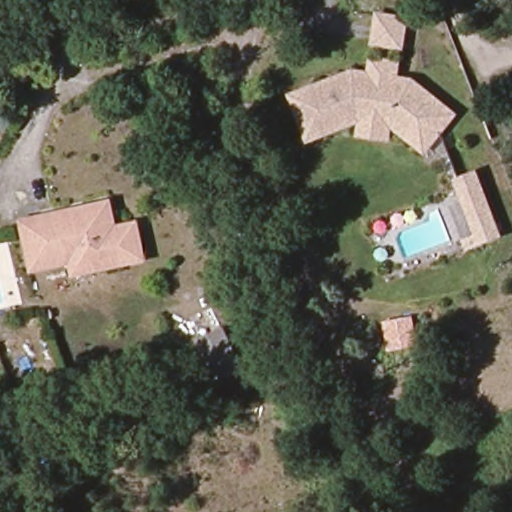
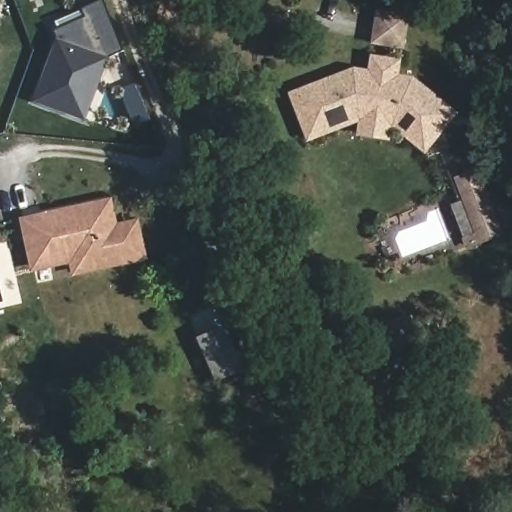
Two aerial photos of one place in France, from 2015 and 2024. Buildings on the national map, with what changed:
new [(61,44),(56,33),(87,19),(84,10),(106,0),(127,53),(108,61),(86,119),(40,102),(61,44)]
unchanged [(373,12),(407,16),(402,50),(368,45),(373,12)]
unchanged [(354,138),(356,124),(305,144),(285,94),(352,68),(365,69),(367,54),(401,59),(398,75),(412,76),(457,114),(424,154),(390,129),(388,142),(354,138)]
unchanged [(476,169),(502,236),(477,245),(451,178),(476,169)]
unchanged [(119,225),(140,223),(146,263),(72,279),(68,266),(30,274),(17,222),(111,200),(119,225)]
unchanged [(247,372),(215,386),(194,342),(225,327),(247,372)]

